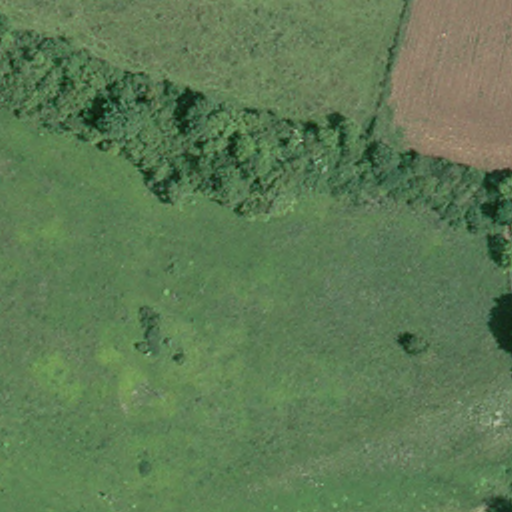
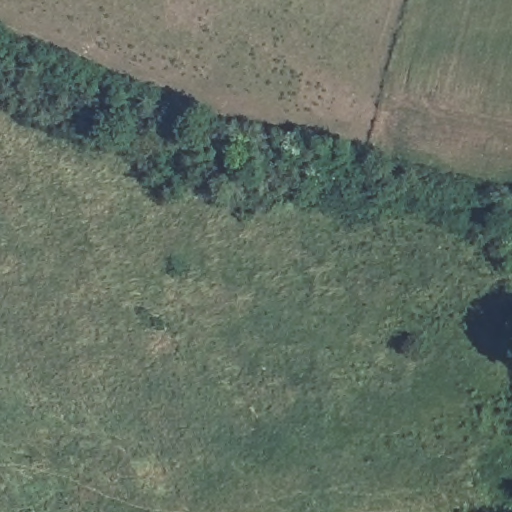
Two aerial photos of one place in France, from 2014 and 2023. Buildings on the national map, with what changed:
[]

